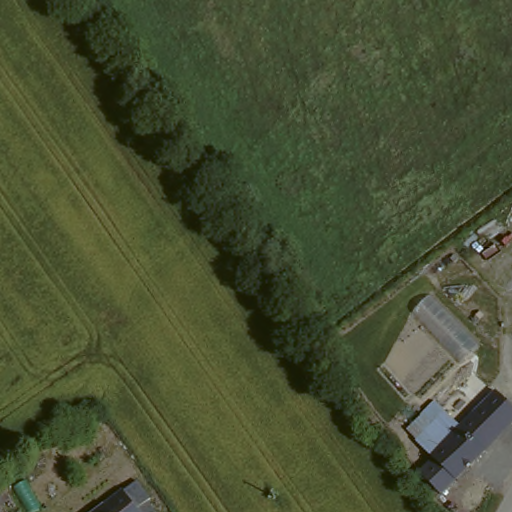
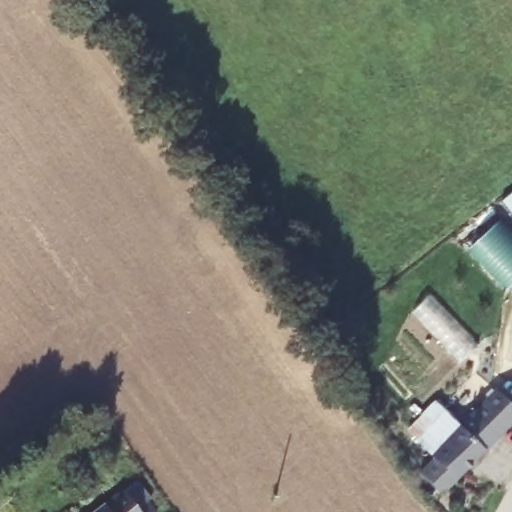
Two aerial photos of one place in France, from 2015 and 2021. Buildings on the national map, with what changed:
new [(471,246),(502,217),(512,227),(512,284),(509,287),(471,246)]
unchanged [(512,406),(512,417),(508,421),(443,491),(441,493),(419,473),(432,457),(411,431),(433,405),(455,427),(471,411),(492,387),(512,406)]
unchanged [(124,483),(141,501),(150,491),(158,501),(145,512),(93,512),(124,483)]

